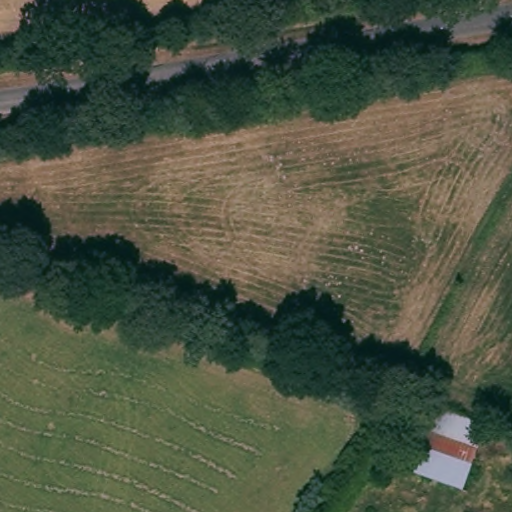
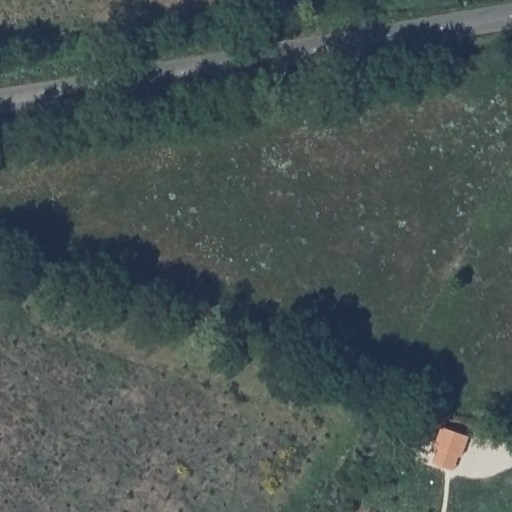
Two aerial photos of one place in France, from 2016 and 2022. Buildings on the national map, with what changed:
unchanged [(405,471),(431,403),(487,423),(467,490),(405,471)]

